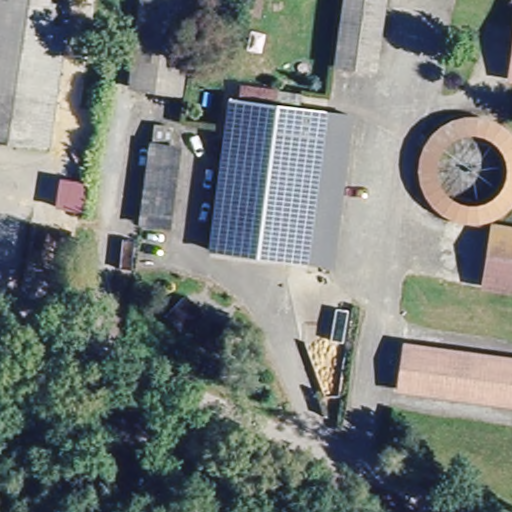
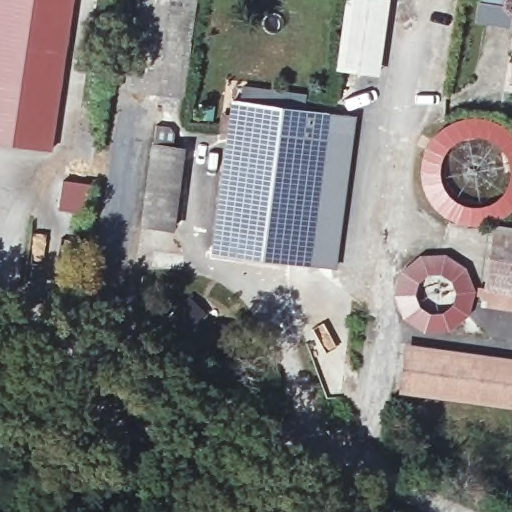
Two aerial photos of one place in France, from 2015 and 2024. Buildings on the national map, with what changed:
unchanged [(51,144),(0,136),(0,0),(73,0),(51,144)]
unchanged [(148,0),(194,0),(182,98),(136,92),(148,0)]
unchanged [(374,84),(337,78),(347,4),(383,9),(374,84)]
unchanged [(262,95),(265,80),(300,85),(298,100),(262,95)]
unchanged [(338,265),(212,249),(232,95),(358,112),(338,265)]
unchanged [(430,203),(421,186),(419,171),(420,163),(424,150),(430,138),(442,127),(460,122),(473,120),(490,124),(502,131),(512,141),(512,202),(502,213),(491,220),(470,223),(457,222),(440,214),(430,203)]
unchanged [(154,121),(172,124),(169,142),(184,145),(172,223),(139,217),(154,121)]
unchanged [(72,247),(46,241),(50,223),(76,228),(72,247)]
unchanged [(512,293),(483,288),(491,231),(512,234),(512,293)]
new [(395,282),(399,272),(405,264),(413,258),(423,254),(433,252),(443,254),(453,258),(461,264),(467,272),(471,282),(472,292),(471,302),(467,312),(461,320),(453,326),(443,330),(433,331),(423,330),(413,326),(405,320),(399,312),(395,302),(393,292),(395,282)]
unchanged [(210,316),(190,338),(169,319),(189,297),(210,316)]
unchanged [(243,332),(235,360),(208,353),(215,324),(243,332)]
unchanged [(512,403),(408,389),(414,355),(512,369),(512,403)]

